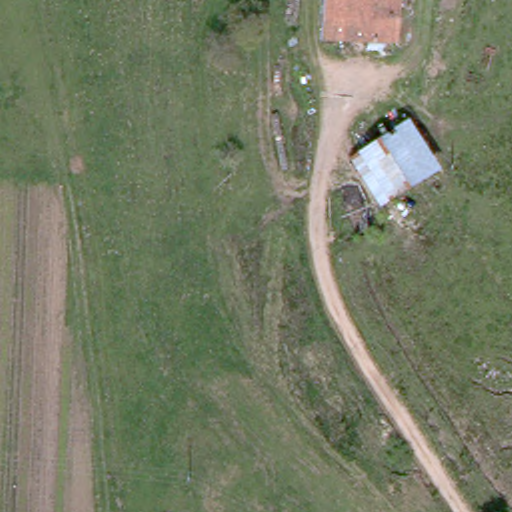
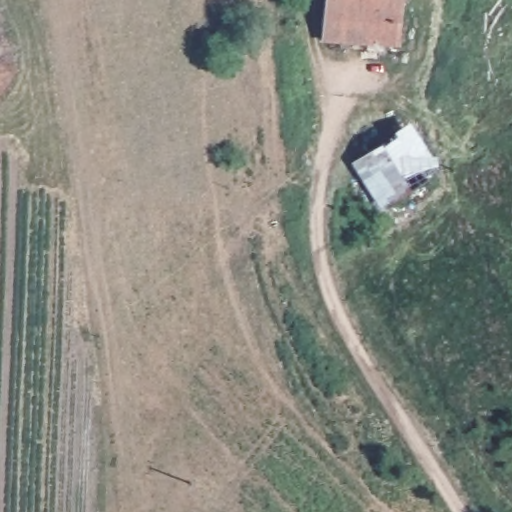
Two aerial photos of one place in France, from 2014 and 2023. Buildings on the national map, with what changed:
unchanged [(323,37),(325,0),(401,0),(398,39),(323,37)]
unchanged [(406,118),(440,165),(376,209),(346,151),(406,118)]

